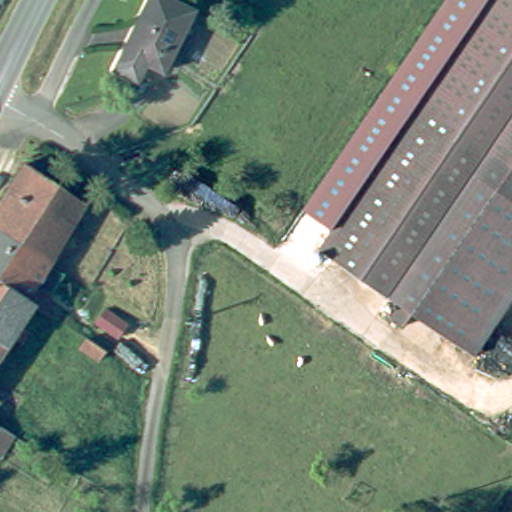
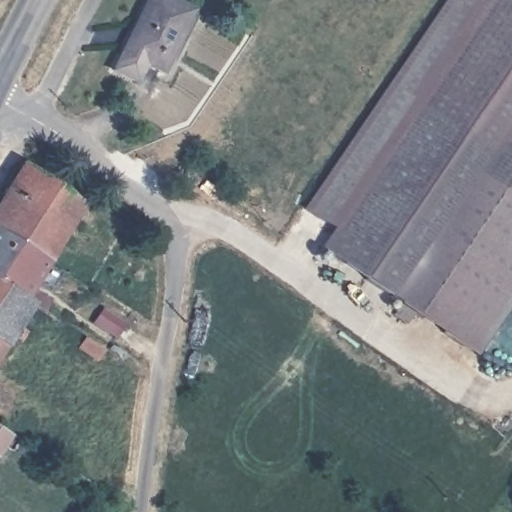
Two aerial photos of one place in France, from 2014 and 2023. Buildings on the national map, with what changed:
unchanged [(191,13),(153,69),(121,45),(150,0),(171,0),(191,13)]
unchanged [(388,77),(443,0),(512,0),(512,163),(388,77)]
unchanged [(512,163),(512,292),(472,348),(319,242),(329,226),(302,208),(388,77),(512,163)]
unchanged [(0,198),(23,162),(83,200),(51,260),(0,230),(0,198)]
unchanged [(53,297),(46,311),(45,310),(32,302),(12,289),(0,282),(0,230),(51,260),(35,285),(53,297)]
unchanged [(32,302),(18,324),(29,331),(23,342),(11,335),(4,346),(0,343),(0,282),(12,289),(32,302)]
unchanged [(91,336),(110,348),(104,360),(83,347),(91,336)]
unchanged [(0,352),(0,343),(4,346),(0,352)]
unchanged [(0,382),(0,375),(3,377),(0,382)]
unchanged [(20,433),(13,445),(2,439),(10,426),(20,433)]

